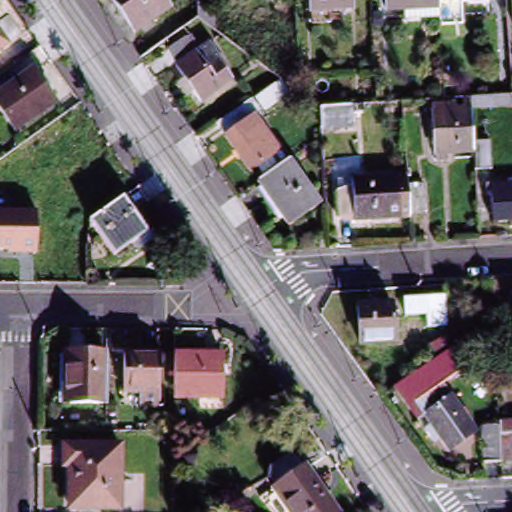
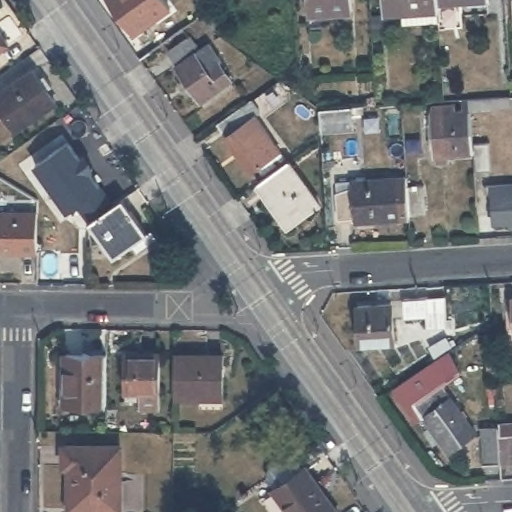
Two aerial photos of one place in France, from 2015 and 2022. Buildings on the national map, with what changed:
unchanged [(172,5),(136,30),(114,0),(168,0),(172,5)]
unchanged [(353,10),(312,11),(312,0),(352,0),(353,10)]
unchanged [(430,15),(395,16),(394,5),(381,5),(380,0),(429,0),(430,15)]
unchanged [(433,22),(432,0),(455,0),(457,20),(433,22)]
unchanged [(0,51),(0,35),(7,45),(0,51)]
unchanged [(193,36),(202,49),(182,64),(172,51),(193,36)]
unchanged [(236,80),(206,101),(181,67),(200,54),(212,71),(223,64),(236,80)]
unchanged [(55,102),(15,130),(0,110),(0,95),(33,71),(55,102)]
unchanged [(445,165),(435,166),(432,116),(453,115),(452,104),(470,102),(510,100),(512,100),(512,111),(470,114),(472,150),(487,149),(489,175),(474,176),(473,157),(445,159),(445,165)]
unchanged [(271,120),(265,123),(290,159),(261,179),(236,144),(237,143),(227,130),(261,107),(271,120)]
unchanged [(349,129),(320,130),(318,110),(348,107),(349,129)]
new [(90,223),(78,205),(66,214),(33,165),(68,141),(81,159),(85,155),(95,168),(89,171),(101,187),(114,205),(90,223)]
demolished [(67,195),(10,194),(10,172),(21,172),(30,172),(30,162),(67,163),(67,195)]
unchanged [(330,210),(299,233),(267,190),(298,167),(330,210)]
unchanged [(338,190),(338,177),(353,176),(405,173),(406,185),(411,215),(356,219),(355,214),(340,215),(338,190)]
unchanged [(411,180),(426,179),(428,208),(415,209),(412,209),(411,180)]
unchanged [(507,225),(507,220),(492,220),(490,191),(486,192),(485,185),(512,184),(512,225),(507,225)]
unchanged [(148,235),(115,258),(90,223),(122,199),(148,235)]
unchanged [(7,250),(0,250),(0,208),(37,209),(37,254),(7,254),(7,250)]
unchanged [(408,319),(407,300),(422,298),(422,302),(425,302),(447,301),(448,330),(429,331),(428,319),(427,319),(425,319),(424,317),(408,319)]
unchanged [(397,305),(401,345),(366,348),(361,308),(397,305)]
unchanged [(455,349),(438,360),(431,348),(447,338),(455,349)]
unchanged [(65,405),(65,355),(107,355),(107,405),(65,405)]
unchanged [(139,409),(140,393),(124,393),(124,356),(160,355),(160,393),(160,410),(139,409)]
unchanged [(175,356),(223,356),(222,400),(175,398),(175,356)]
unchanged [(432,369),(453,357),(461,368),(441,383),(432,369)]
unchanged [(427,437),(433,432),(418,410),(436,395),(444,387),(477,433),(452,451),(442,436),(442,437),(442,438),(444,446),(438,451),(427,437)]
unchanged [(512,423),(512,463),(511,463),(510,462),(506,462),(503,431),(503,423),(512,423)]
unchanged [(502,427),(502,428),(502,434),(502,435),(505,463),(486,465),(482,428),(502,427)]
unchanged [(121,447),(121,510),(72,510),(71,467),(65,467),(65,446),(121,447)]
unchanged [(272,477),(273,469),(290,457),(298,458),(300,459),(307,470),(311,467),(343,512),(293,512),(278,490),(279,490),(272,480),(272,477)]

